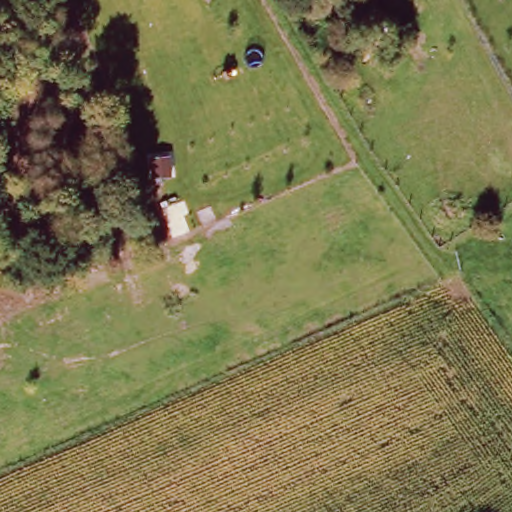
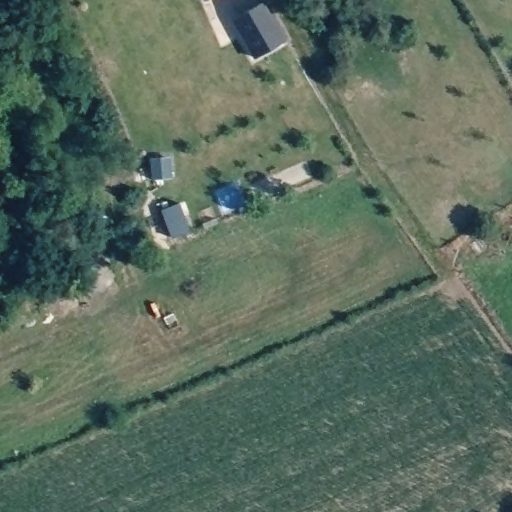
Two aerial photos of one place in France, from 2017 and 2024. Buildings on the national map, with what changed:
new [(286,40),(254,58),(232,21),(264,3),(286,40)]

